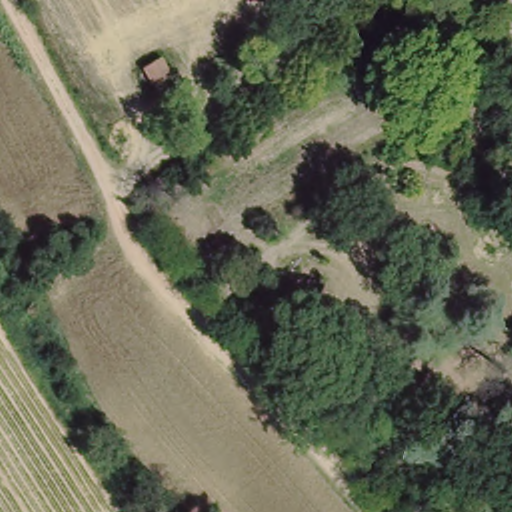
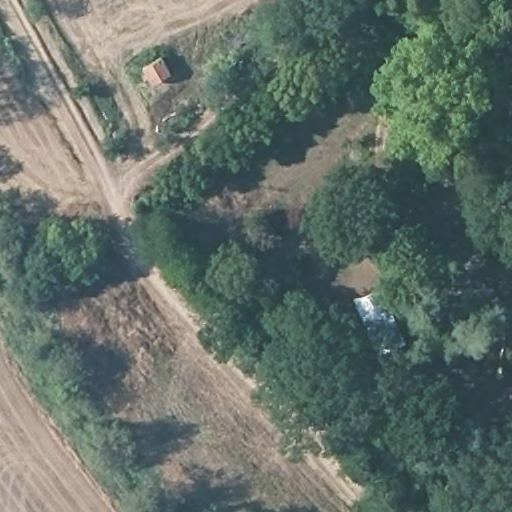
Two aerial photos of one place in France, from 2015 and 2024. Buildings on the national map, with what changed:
unchanged [(174,76),(145,88),(136,61),(165,51),(174,76)]

